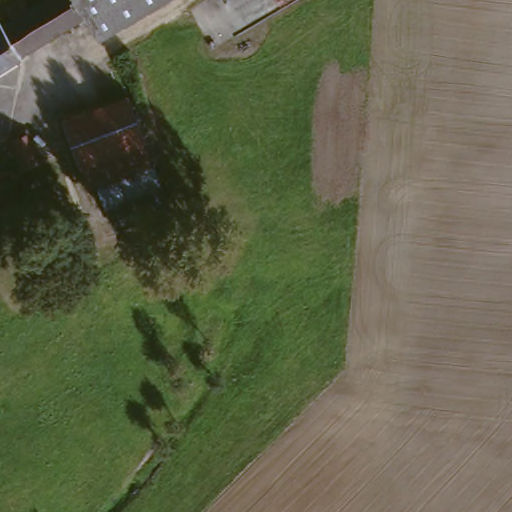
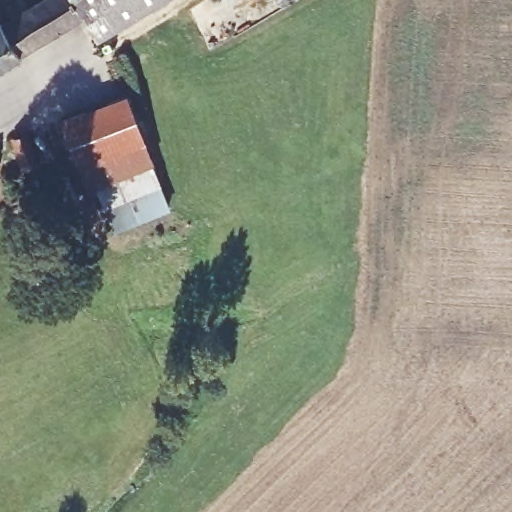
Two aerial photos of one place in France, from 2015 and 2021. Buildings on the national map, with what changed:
unchanged [(12,15),(10,6),(14,2),(17,0),(21,0),(29,4),(36,0),(74,0),(84,15),(0,68),(0,19),(1,21),(12,15)]
unchanged [(97,38),(84,15),(74,0),(163,0),(97,38)]
unchanged [(124,97),(166,205),(104,229),(61,117),(124,97)]
unchanged [(25,135),(35,164),(21,168),(10,141),(25,135)]

